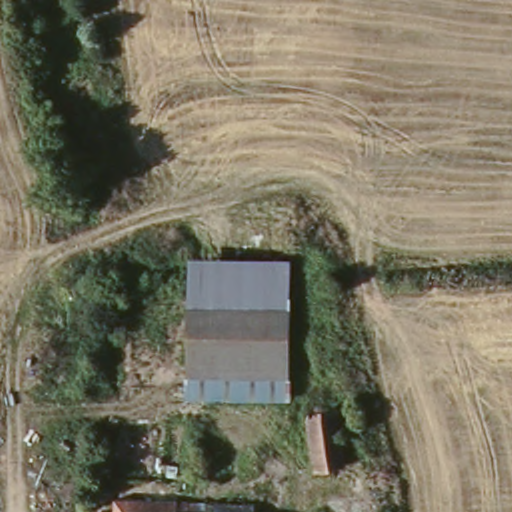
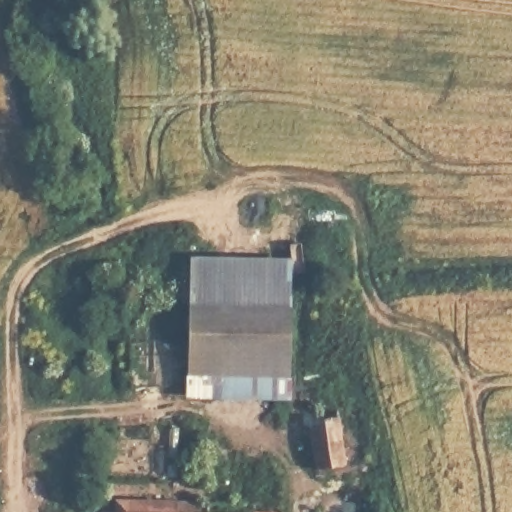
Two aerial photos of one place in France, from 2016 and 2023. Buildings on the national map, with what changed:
unchanged [(287,396),(185,392),(192,252),(294,256),(287,396)]
unchanged [(353,408),(360,467),(332,470),(324,412),(353,408)]
unchanged [(178,501),(208,504),(255,504),(256,512),(114,512),(115,501),(178,501)]

